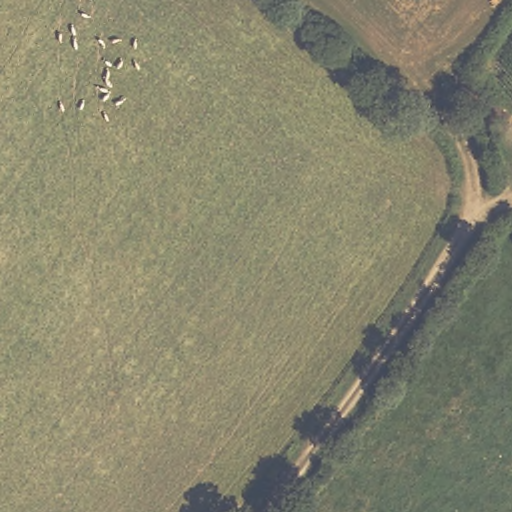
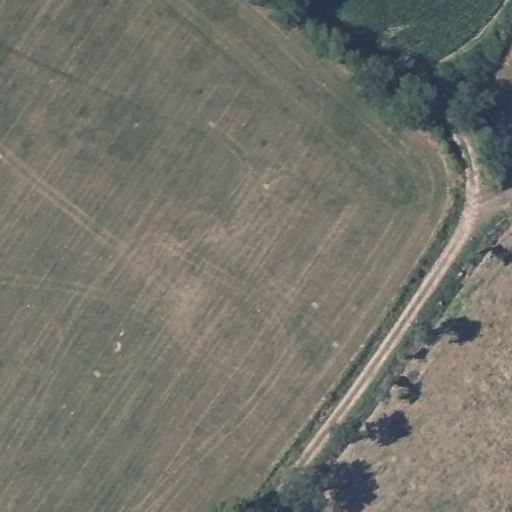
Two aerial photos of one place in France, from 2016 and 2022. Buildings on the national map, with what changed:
[]

